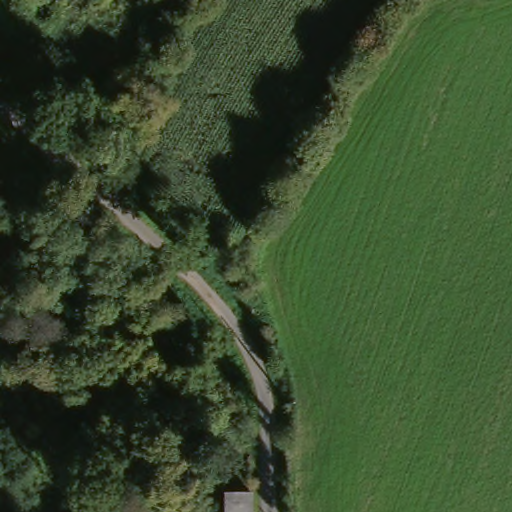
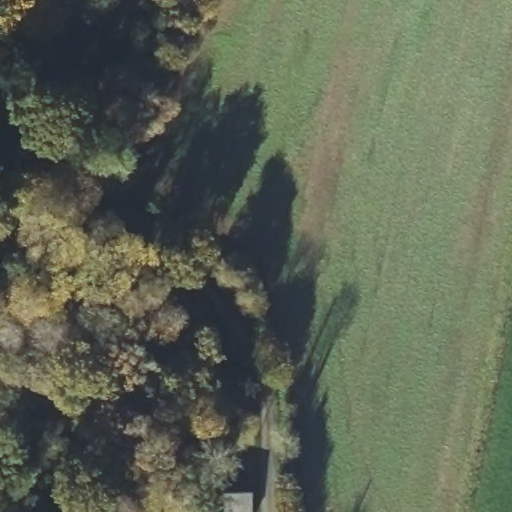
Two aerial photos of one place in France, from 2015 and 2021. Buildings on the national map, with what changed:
unchanged [(221,471),(249,472),(251,512),(226,512),(221,471)]

